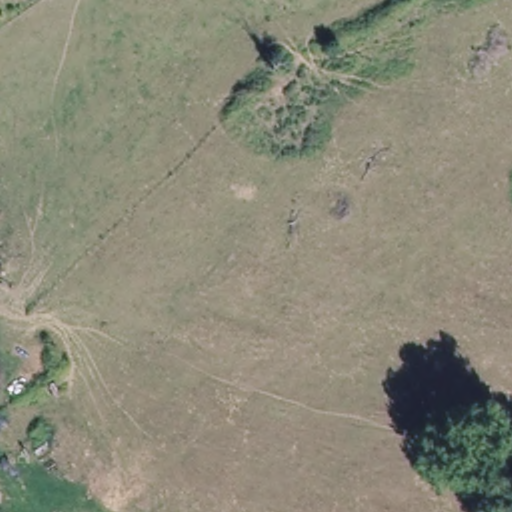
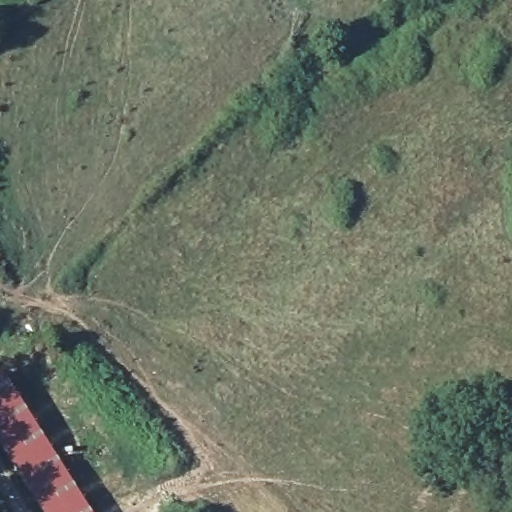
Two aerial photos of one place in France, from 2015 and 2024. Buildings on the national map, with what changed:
new [(28,412),(91,512),(39,512),(3,458),(0,453),(0,371),(3,369),(28,412)]

